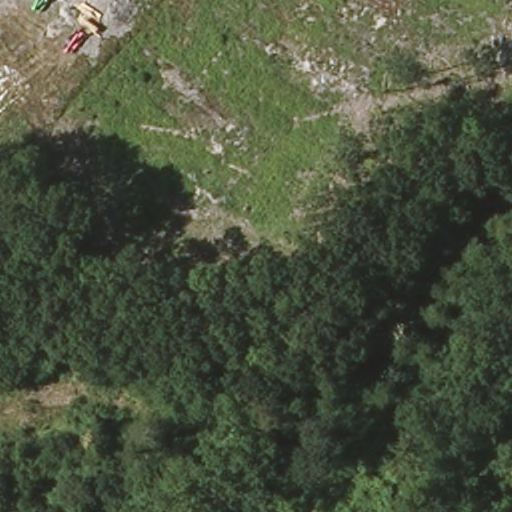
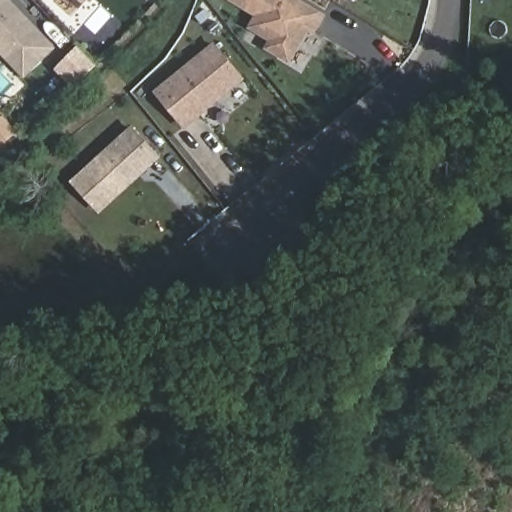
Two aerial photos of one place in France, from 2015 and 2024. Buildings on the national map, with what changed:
new [(0,53),(0,0),(10,0),(56,47),(25,78),(0,53)]
new [(313,36),(307,33),(289,64),(263,49),(268,40),(246,27),(253,16),(226,0),(300,0),(325,15),(313,36)]
new [(184,128),(153,91),(214,41),(245,78),(184,128)]
new [(80,49),(96,66),(74,86),(58,70),(80,49)]
new [(0,148),(0,111),(18,133),(0,148)]
new [(100,213),(70,181),(132,125),(161,158),(100,213)]

